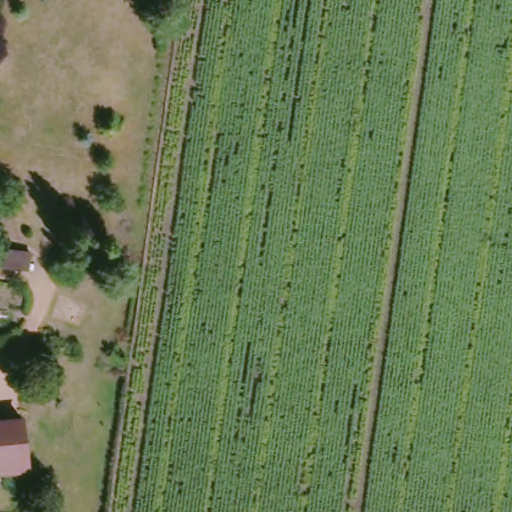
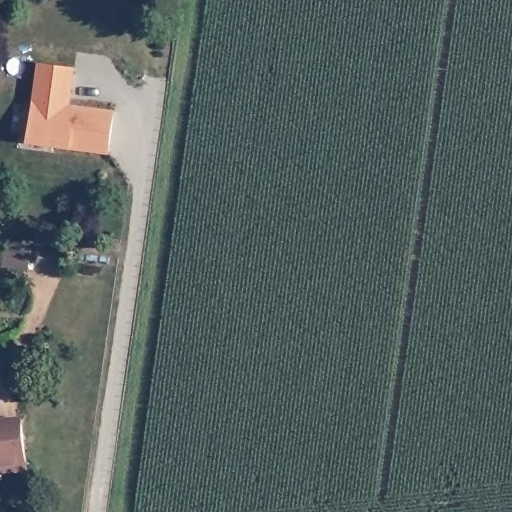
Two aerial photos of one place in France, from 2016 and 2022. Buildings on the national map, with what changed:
new [(110,155),(27,144),(37,63),(75,68),(70,104),(115,111),(110,155)]
unchanged [(0,247),(27,251),(25,268),(0,265),(0,247)]
unchanged [(0,423),(17,421),(25,472),(0,475),(0,423)]

